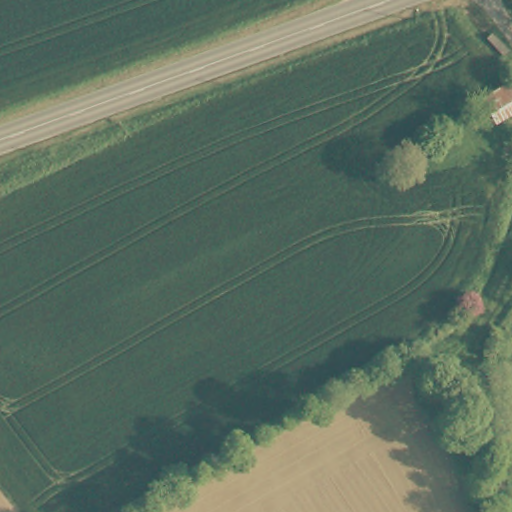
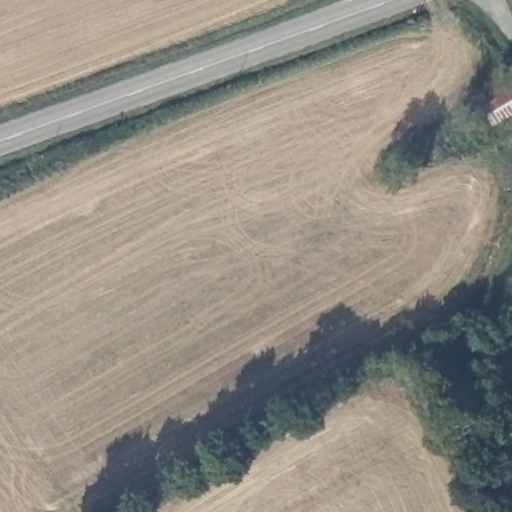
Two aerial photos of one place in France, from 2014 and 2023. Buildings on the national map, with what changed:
unchanged [(496,128),(481,101),(512,80),(512,118),(496,128)]

